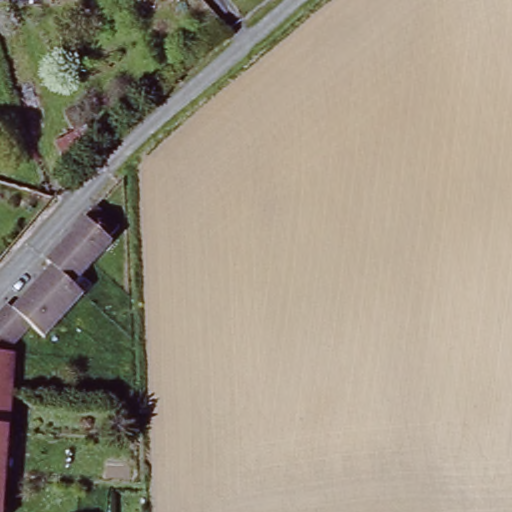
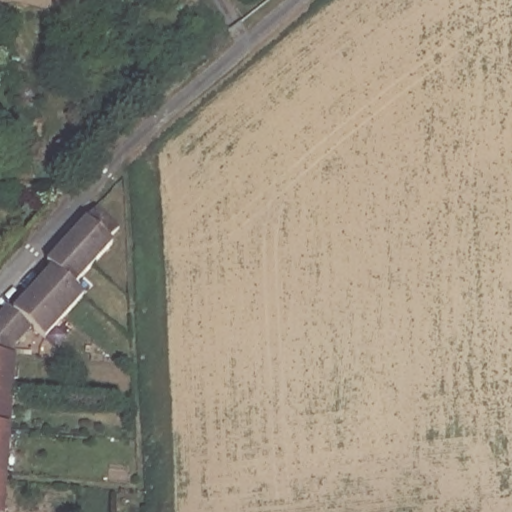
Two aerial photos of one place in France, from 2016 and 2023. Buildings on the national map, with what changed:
unchanged [(57,261),(51,257),(100,202),(123,224),(113,235),(117,239),(78,281),(88,290),(49,333),(37,322),(20,345),(10,512),(0,512),(0,314),(12,300),(17,305),(57,261)]

